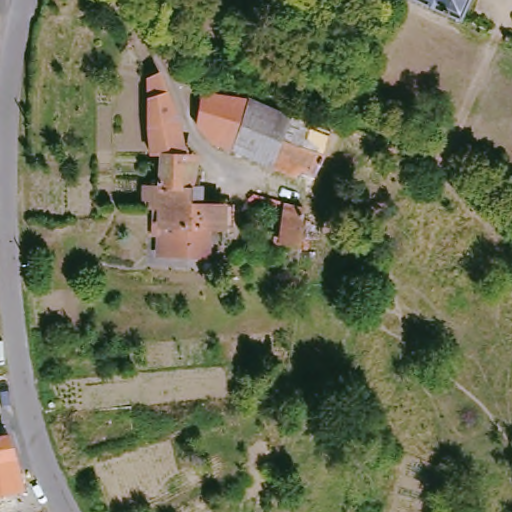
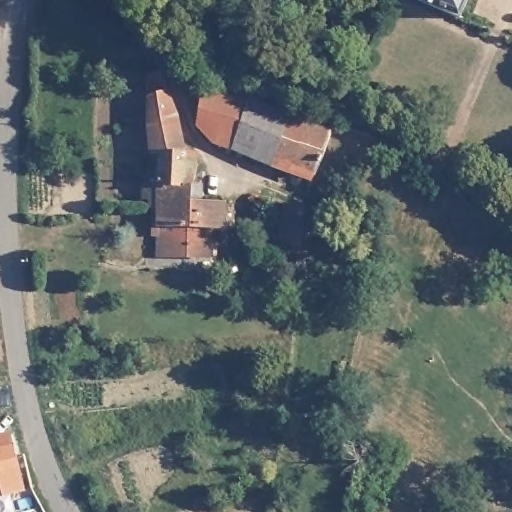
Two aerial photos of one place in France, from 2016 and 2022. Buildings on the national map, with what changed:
unchanged [(461,20),(418,0),(470,0),(461,20)]
unchanged [(152,76),(160,72),(166,91),(177,120),(185,153),(187,153),(186,186),(192,186),(192,204),(232,205),(233,212),(233,228),(210,229),(209,258),(159,256),(159,235),(154,234),(154,207),(152,207),(151,199),(144,199),(145,186),(160,186),(160,155),(152,154),(149,128),(149,81),(152,76)]
unchanged [(247,93),(284,107),(325,122),(309,175),(299,198),(284,194),(296,170),(265,159),(229,144),(209,137),(192,120),(200,87),(247,93)]
unchanged [(299,204),(296,241),(276,236),(282,199),(299,204)]
unchanged [(27,490),(0,496),(0,438),(15,436),(27,490)]

